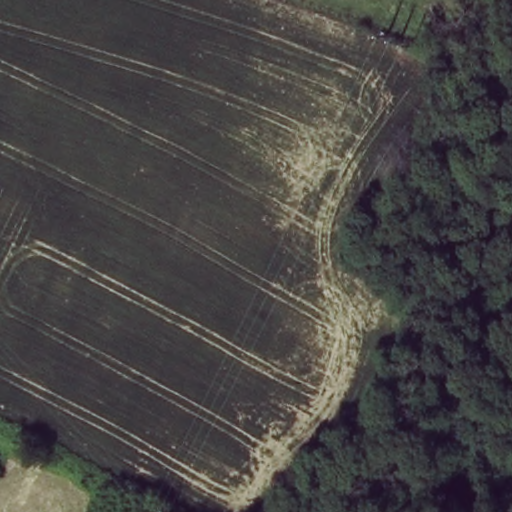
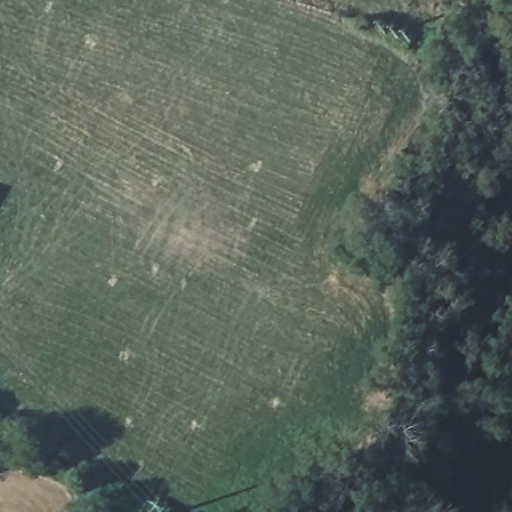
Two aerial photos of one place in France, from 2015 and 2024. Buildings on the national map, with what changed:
[]

